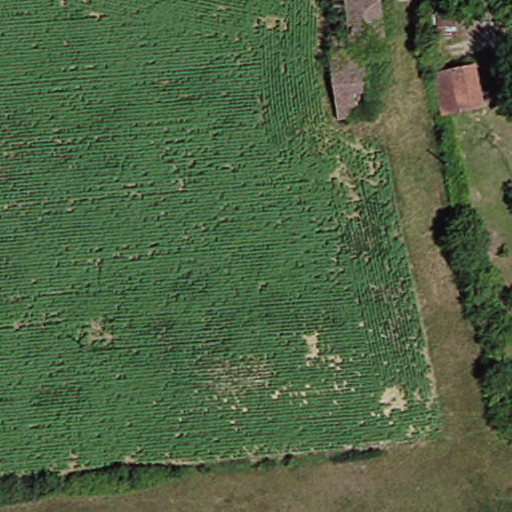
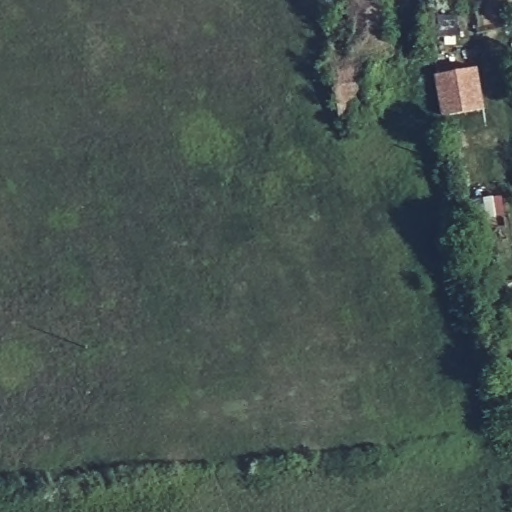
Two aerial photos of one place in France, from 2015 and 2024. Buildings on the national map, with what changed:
unchanged [(323,59),(346,56),(337,0),(350,0),(374,4),(382,54),(360,59),(368,120),(332,125),(323,59)]
unchanged [(473,69),(481,111),(441,118),(433,79),(473,69)]

